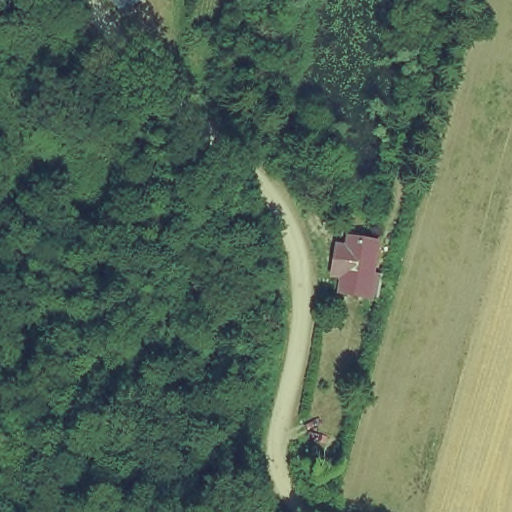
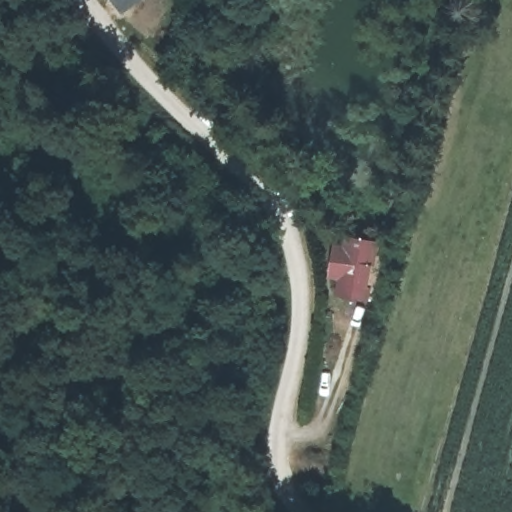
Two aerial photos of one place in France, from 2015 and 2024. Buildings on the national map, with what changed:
unchanged [(437,155),(422,232),(369,209),(387,134),(437,155)]
unchanged [(353,251),(376,255),(370,293),(347,289),(353,251)]

